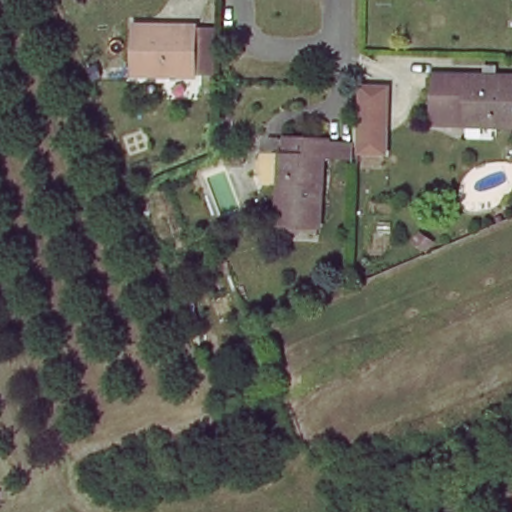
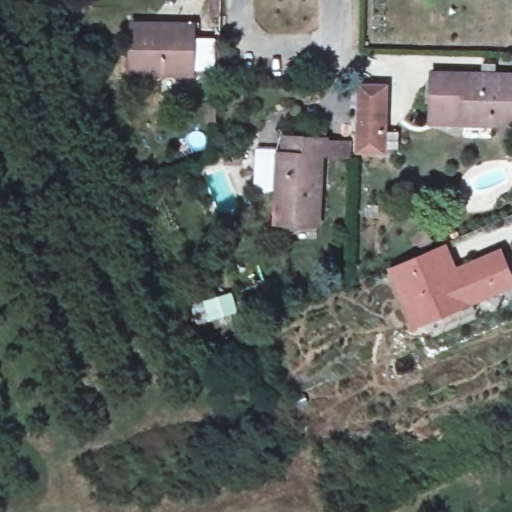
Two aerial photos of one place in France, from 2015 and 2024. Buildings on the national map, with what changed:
unchanged [(201,76),(141,75),(144,25),(204,26),(201,76)]
unchanged [(432,124),(432,117),(433,77),(512,77),(512,125),(464,125),(432,124)]
unchanged [(311,224),(308,224),(307,232),(283,231),(283,223),(271,223),(273,153),(280,153),(282,136),(323,138),(351,139),(352,87),(379,88),(378,153),(350,153),(350,155),(323,154),(314,154),(311,224)]
new [(454,268),(502,246),(512,270),(512,285),(459,305),(461,310),(410,329),(390,268),(447,247),(454,268)]

